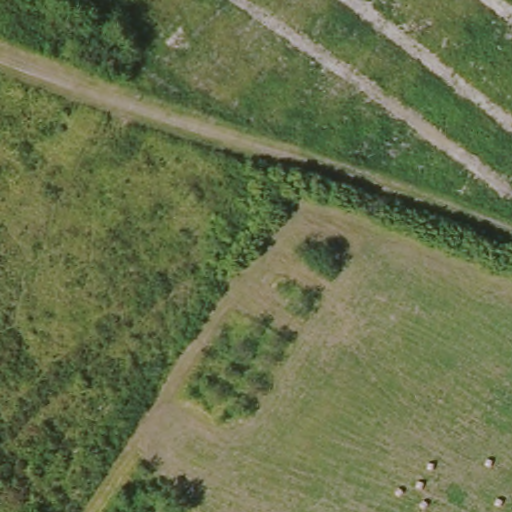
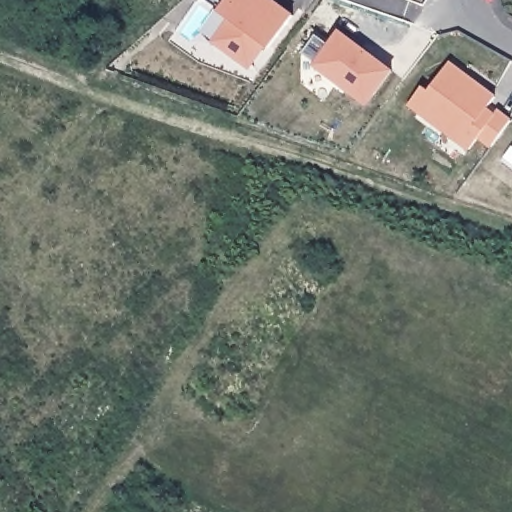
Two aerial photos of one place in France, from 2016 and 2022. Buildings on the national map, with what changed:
new [(264,46),(250,71),(212,43),(229,18),(219,12),(227,0),(276,0),(294,13),(269,49),(264,46)]
new [(337,35),(359,51),(362,48),(391,71),(366,104),(315,65),(337,35)]
new [(497,96),(489,109),(495,113),(499,109),(512,118),(491,148),(477,138),(469,151),(408,105),(422,86),(429,91),(451,61),(497,96)]

